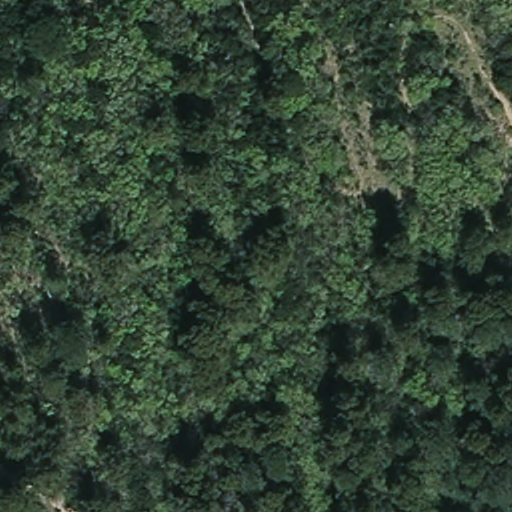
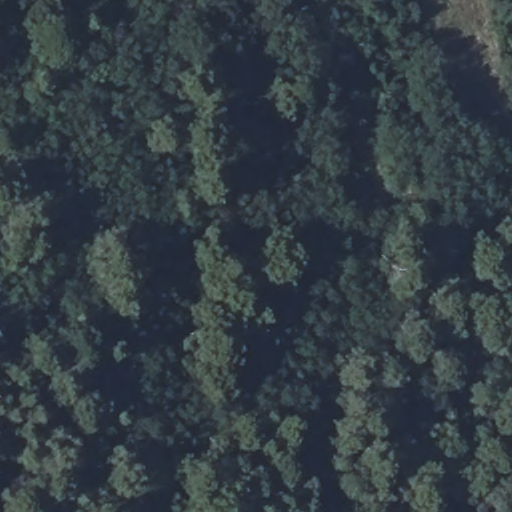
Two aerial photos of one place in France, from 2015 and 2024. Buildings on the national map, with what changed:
[]

